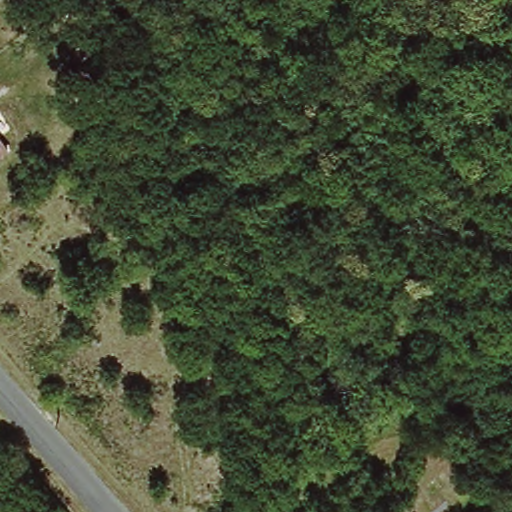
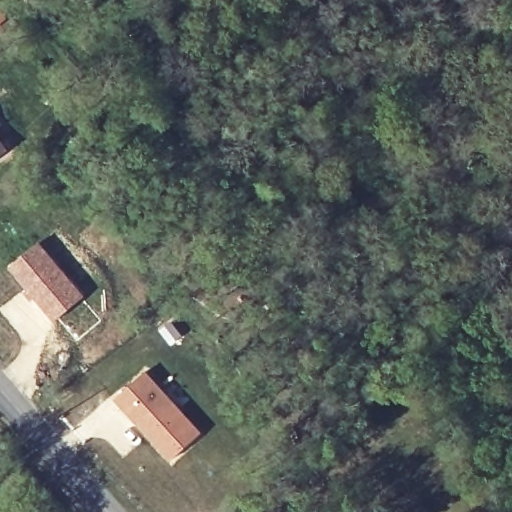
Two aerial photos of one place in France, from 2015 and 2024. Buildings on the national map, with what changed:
unchanged [(0,159),(0,133),(12,149),(0,159)]
new [(38,239),(85,295),(52,323),(6,267),(38,239)]
new [(144,369),(203,431),(168,462),(110,398),(144,369)]

